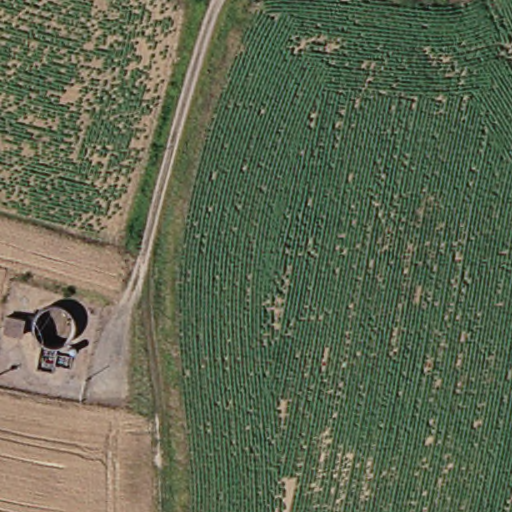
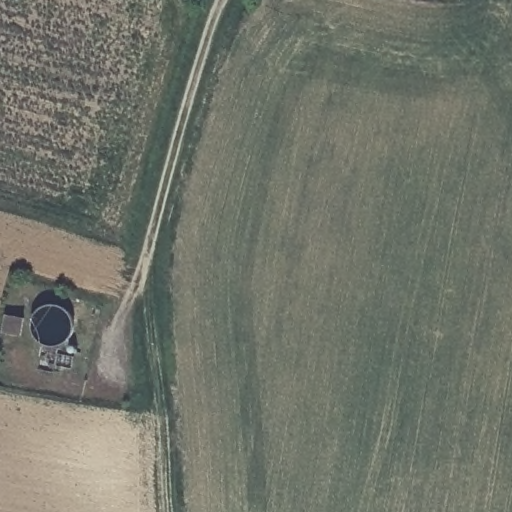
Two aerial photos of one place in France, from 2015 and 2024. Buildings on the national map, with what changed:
unchanged [(12,318),(0,315),(0,297),(16,301),(12,318)]

